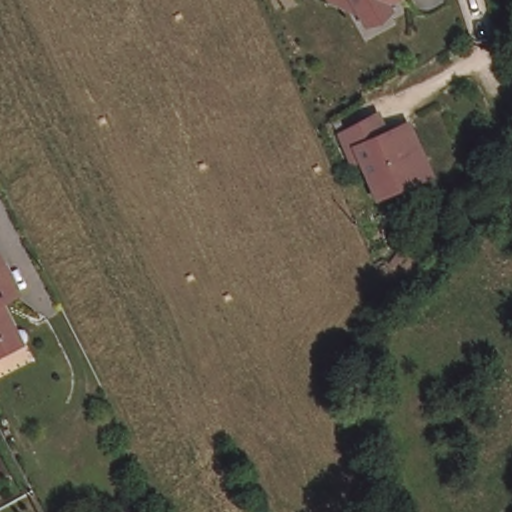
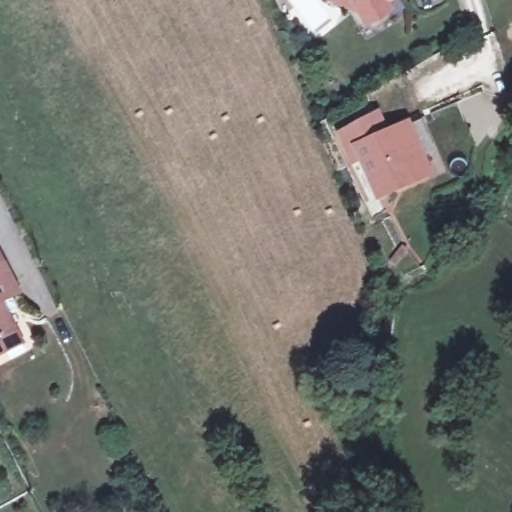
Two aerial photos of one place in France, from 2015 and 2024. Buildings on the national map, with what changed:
unchanged [(385,0),(383,13),(371,19),(360,13),(334,0),(385,0)]
unchanged [(398,186),(377,196),(360,156),(352,160),(339,131),(370,116),(377,135),(406,122),(421,155),(413,159),(406,176),(409,182),(398,186)]
unchanged [(0,349),(0,251),(18,289),(0,298),(14,326),(21,339),(6,346),(0,349)]

